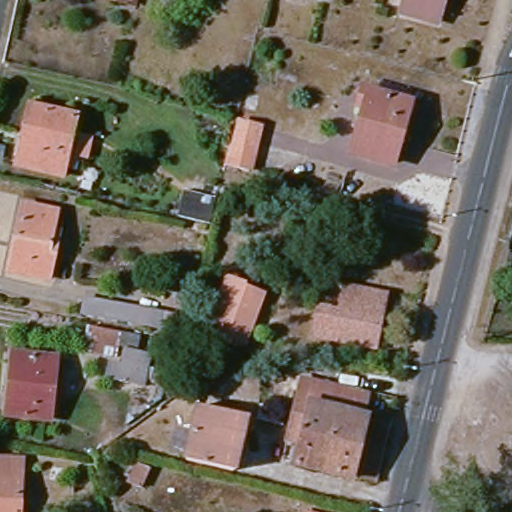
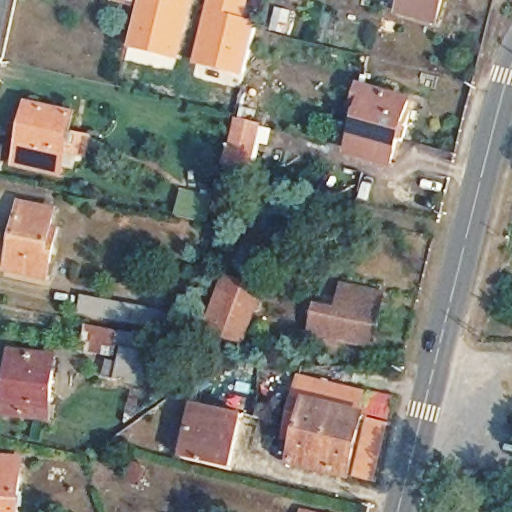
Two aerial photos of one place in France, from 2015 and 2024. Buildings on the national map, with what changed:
unchanged [(94,2),(95,0),(126,0),(123,9),(94,2)]
new [(191,0),(176,61),(124,48),(136,0),(191,0)]
new [(250,0),(246,18),(257,21),(241,77),(194,64),(209,0),(250,0)]
unchanged [(295,0),(301,0),(301,1),(295,0)]
unchanged [(396,17),(400,0),(441,0),(434,27),(396,17)]
unchanged [(216,83),(214,89),(235,95),(231,107),(193,97),(198,77),(216,83)]
unchanged [(353,110),(359,91),(406,105),(387,168),(347,156),(359,112),(353,110)]
unchanged [(75,115),(61,173),(16,164),(31,105),(75,115)]
unchanged [(233,149),(240,122),(260,126),(249,170),(224,164),(228,148),(233,149)]
unchanged [(204,224),(171,216),(177,195),(210,203),(204,224)]
unchanged [(50,216),(46,234),(52,235),(42,282),(5,274),(18,209),(50,216)]
unchanged [(239,289),(238,292),(257,299),(236,353),(218,345),(220,340),(204,333),(223,283),(239,289)]
unchanged [(331,316),(337,291),(375,299),(364,350),(306,338),(313,312),(331,316)]
unchanged [(153,317),(150,332),(74,317),(77,302),(153,317)]
unchanged [(105,361),(67,354),(70,343),(76,344),(78,331),(123,339),(121,347),(114,346),(113,351),(108,350),(105,361)]
unchanged [(138,372),(158,376),(156,387),(136,383),(135,389),(95,382),(99,366),(110,368),(113,351),(141,356),(138,372)]
unchanged [(50,362),(42,424),(1,419),(8,358),(50,362)]
unchanged [(346,478),(291,465),(297,441),(285,438),(299,379),(362,394),(356,414),(362,415),(346,478)]
unchanged [(174,463),(188,408),(240,422),(227,477),(174,463)]
unchanged [(362,415),(386,421),(371,484),(346,478),(362,415)]
unchanged [(17,464),(13,512),(0,512),(0,463),(17,464)]

